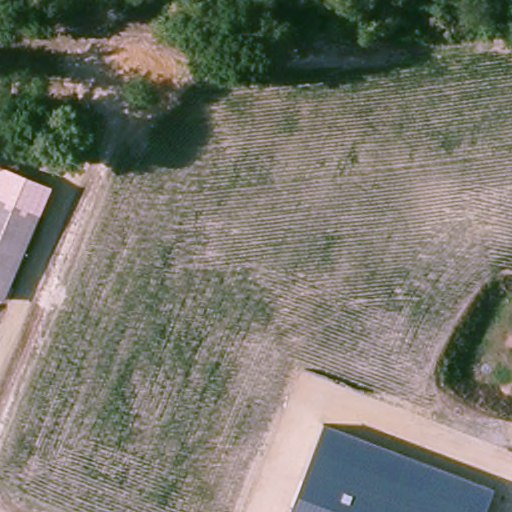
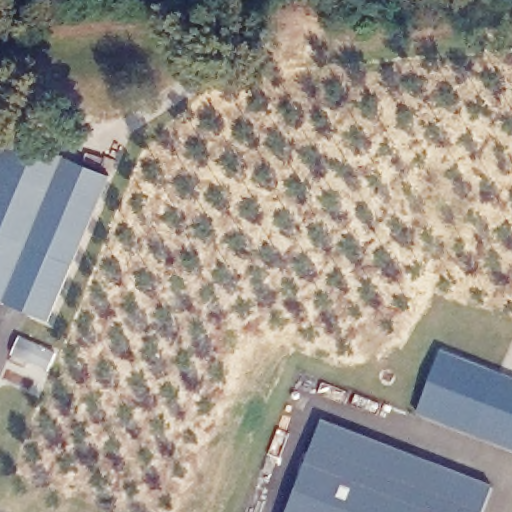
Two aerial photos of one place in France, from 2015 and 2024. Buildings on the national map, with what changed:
new [(111,175),(49,321),(0,300),(0,299),(32,219),(46,186),(0,166),(0,148),(7,131),(111,175)]
new [(0,166),(46,186),(32,219),(0,206),(0,166)]
unchanged [(0,206),(32,219),(0,299),(0,206)]
new [(19,335),(56,352),(46,373),(9,358),(19,335)]
new [(442,353),(498,373),(474,436),(419,416),(442,353)]
new [(512,379),(512,451),(474,436),(498,373),(512,379)]
unchanged [(494,488),(485,512),(287,512),(322,421),(494,488)]

